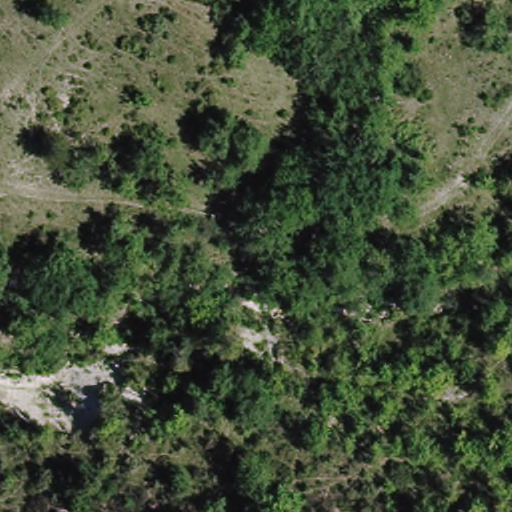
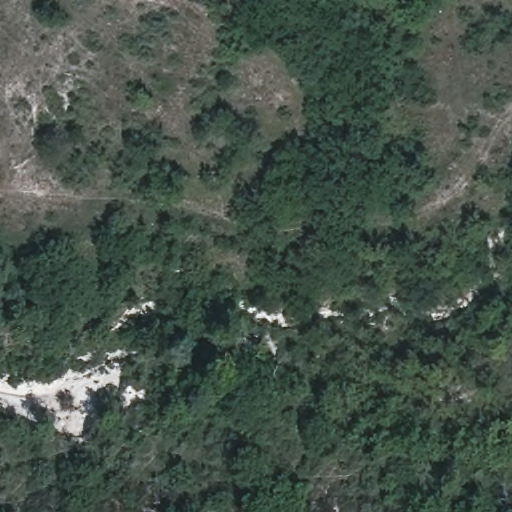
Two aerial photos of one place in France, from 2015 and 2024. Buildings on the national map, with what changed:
[]

